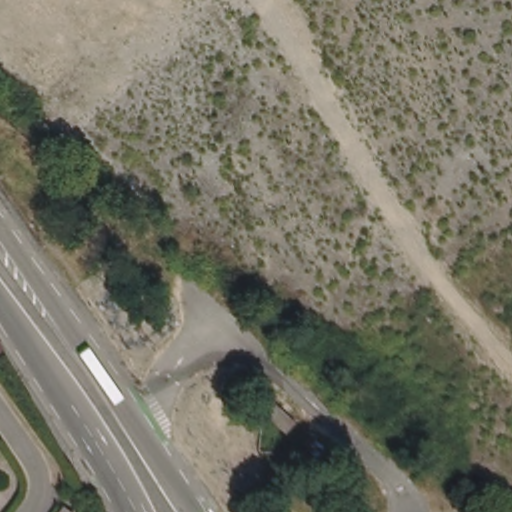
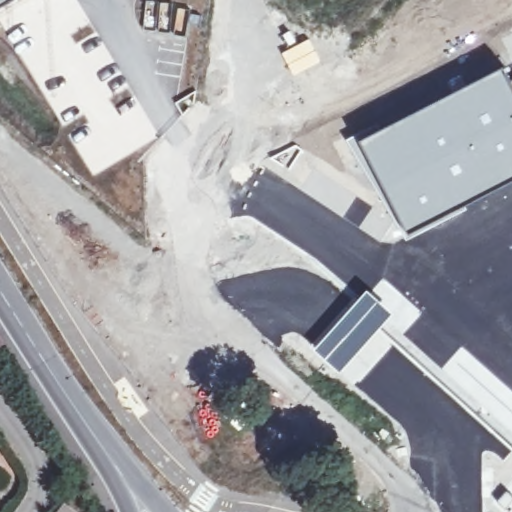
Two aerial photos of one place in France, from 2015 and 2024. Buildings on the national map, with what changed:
new [(14,0),(0,8),(0,0),(15,0),(14,0)]
new [(309,37),(321,60),(293,76),(280,52),(309,37)]
new [(503,65),(510,79),(512,79),(512,181),(485,196),(442,222),(405,240),(345,140),(356,134),(358,139),(503,65)]
new [(382,276),(422,312),(402,335),(393,327),(410,313),(402,307),(395,314),(368,288),(382,276)]
new [(333,322),(368,288),(395,314),(383,325),(340,372),(312,347),(333,322)]
unchanged [(0,348),(0,345),(1,347),(0,348)]
unchanged [(67,512),(57,512),(60,507),(67,512)]

